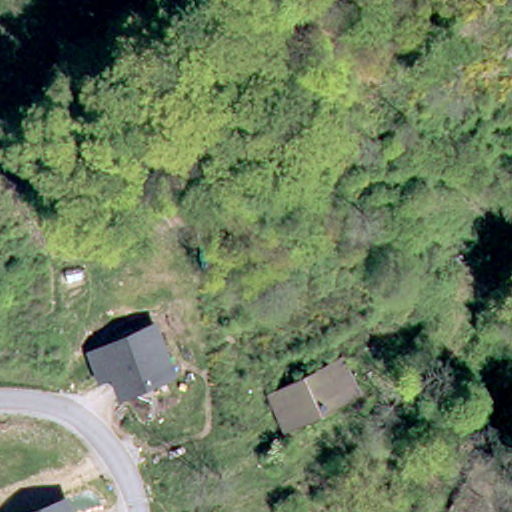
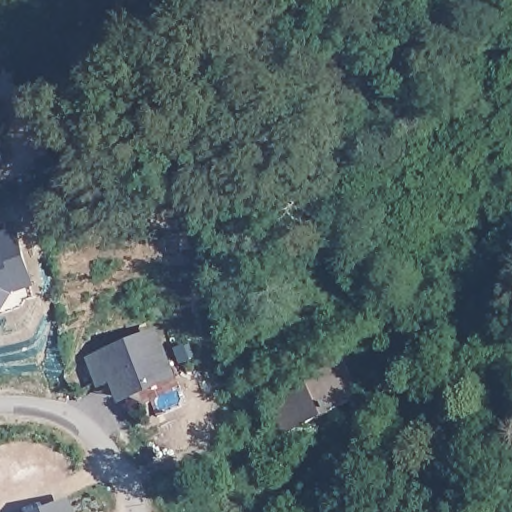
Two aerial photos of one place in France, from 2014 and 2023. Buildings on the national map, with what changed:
new [(15,227),(36,287),(14,295),(6,314),(0,311),(0,232),(15,227)]
unchanged [(159,329),(179,380),(122,401),(113,380),(98,385),(84,356),(159,329)]
new [(188,343),(194,357),(189,360),(179,363),(173,349),(183,345),(188,343)]
unchanged [(336,361),(353,398),(281,433),(264,395),(326,365),(336,361)]
unchanged [(74,512),(40,512),(70,500),(74,512)]

